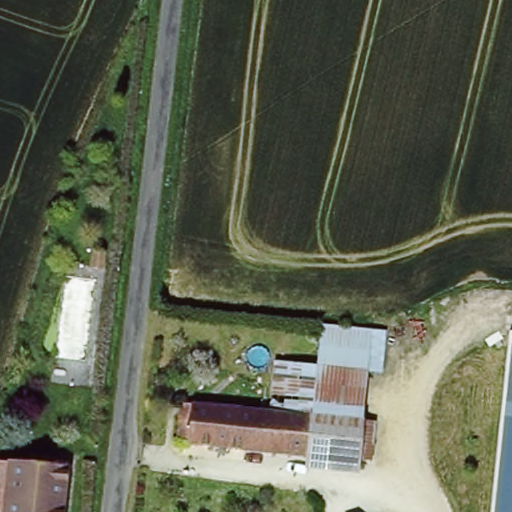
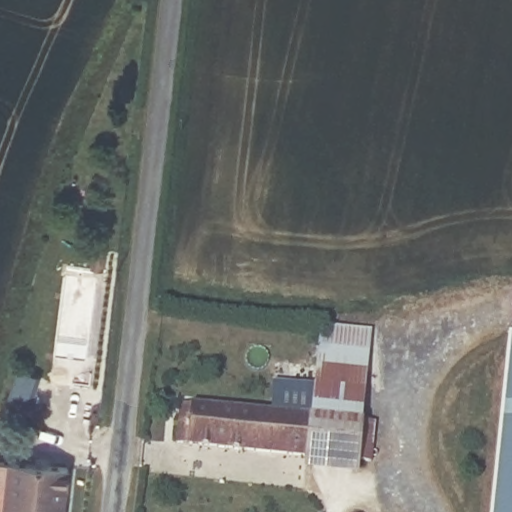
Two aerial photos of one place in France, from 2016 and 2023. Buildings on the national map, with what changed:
unchanged [(107,254),(105,273),(90,271),(92,252),(107,254)]
unchanged [(267,409),(273,360),(315,365),(320,323),(388,331),(382,373),(367,373),(360,421),(377,425),(369,463),(357,463),(356,475),(307,470),(307,460),(265,455),(267,409)]
unchanged [(512,512),(489,512),(492,478),(500,401),(507,330),(512,331),(512,512)]
unchanged [(265,455),(187,446),(189,400),(267,409),(265,455)]
unchanged [(29,455),(51,457),(50,466),(70,468),(65,512),(0,512),(0,461),(28,463),(29,455)]

